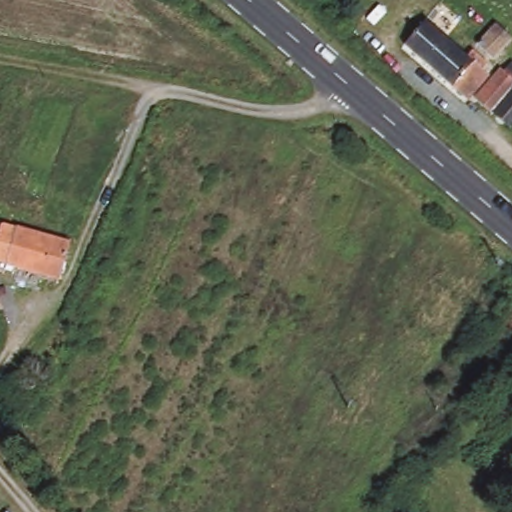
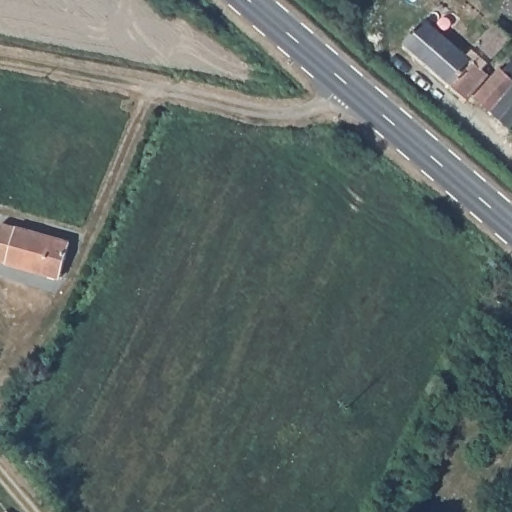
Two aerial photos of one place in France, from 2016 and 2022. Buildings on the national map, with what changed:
unchanged [(512,52),(501,67),(481,51),(499,27),(512,38),(512,52)]
unchanged [(431,31),(466,58),(471,51),(489,64),(483,71),(488,75),(469,98),(411,54),(431,31)]
unchanged [(512,70),(512,127),(482,105),(504,76),(506,78),(512,70)]
unchanged [(72,241),(62,281),(0,268),(0,228),(1,224),(72,241)]

